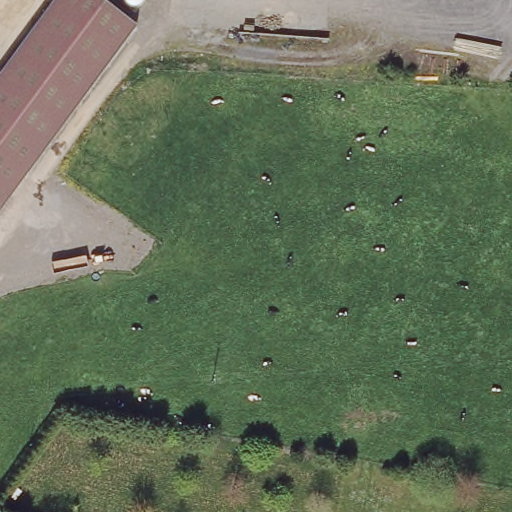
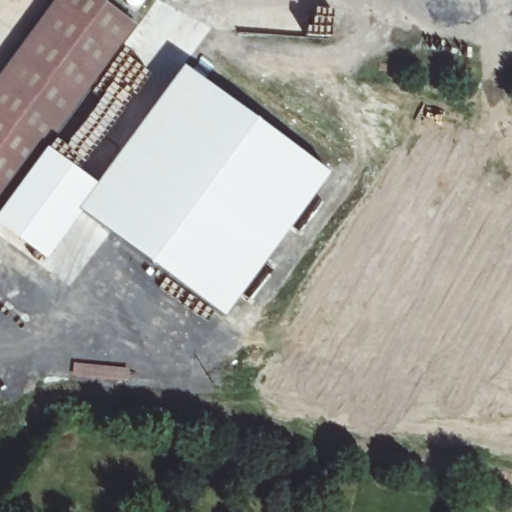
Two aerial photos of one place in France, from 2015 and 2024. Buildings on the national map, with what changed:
unchanged [(55,0),(95,0),(133,28),(16,190),(0,212),(0,75),(55,0)]
new [(16,190),(47,147),(96,183),(182,64),(329,172),(224,316),(80,210),(45,258),(0,224),(0,212),(16,190)]

